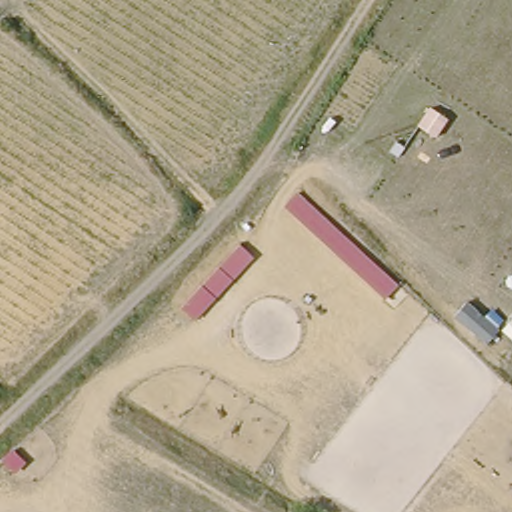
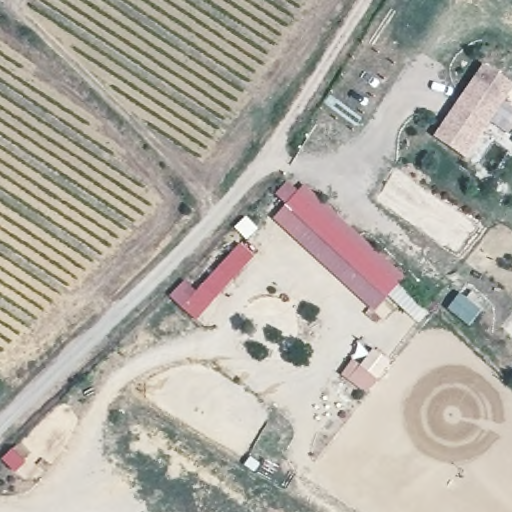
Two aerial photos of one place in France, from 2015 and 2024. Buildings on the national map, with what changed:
new [(433,136),(482,64),(512,84),(512,90),(466,159),(433,136)]
unchanged [(385,300),(284,208),(298,193),(398,285),(385,300)]
new [(249,240),(239,230),(248,220),(259,230),(249,240)]
unchanged [(198,320),(183,308),(239,245),(255,258),(198,320)]
new [(507,331),(512,326),(512,336),(507,331)]
new [(362,369),(374,353),(390,366),(377,381),(362,369)]
new [(27,463),(16,473),(5,462),(16,452),(27,463)]

